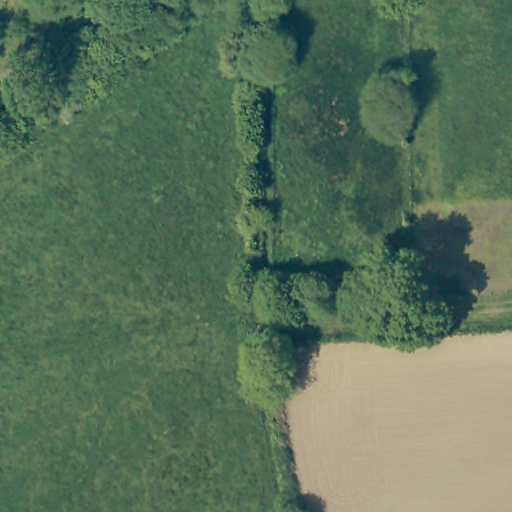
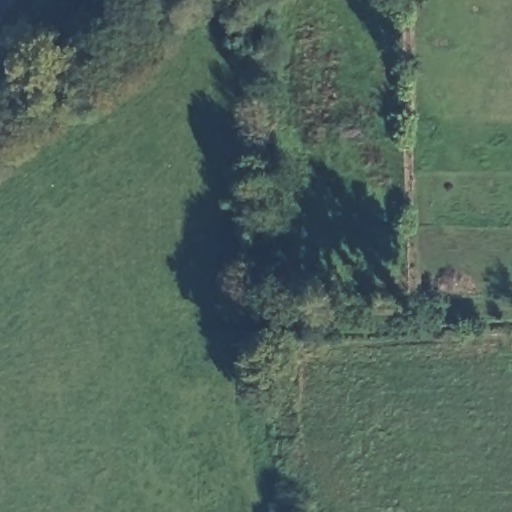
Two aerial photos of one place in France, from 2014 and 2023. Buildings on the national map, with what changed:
[]

